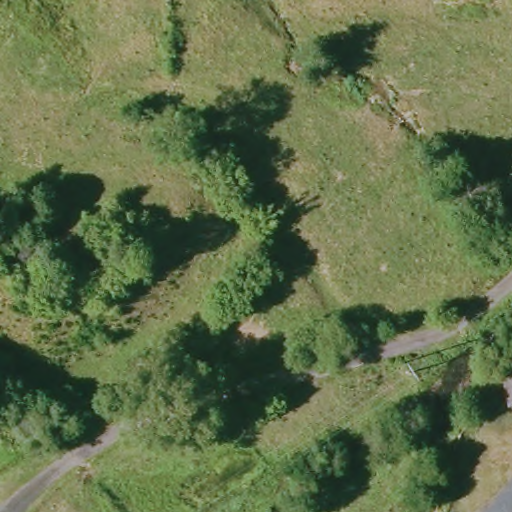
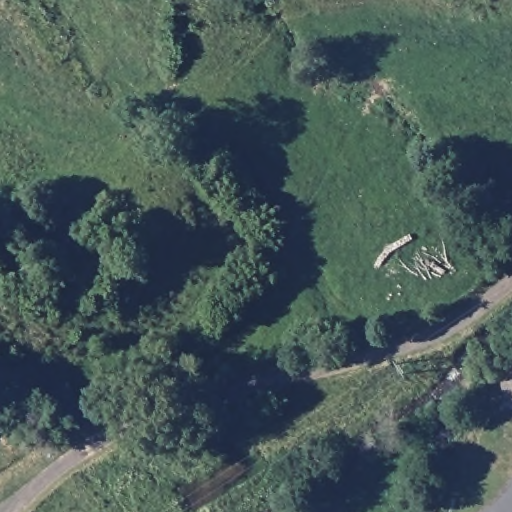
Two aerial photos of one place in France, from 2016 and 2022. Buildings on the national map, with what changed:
unchanged [(512,358),(512,401),(507,405),(494,399),(492,380),(497,376),(494,370),(512,358)]

